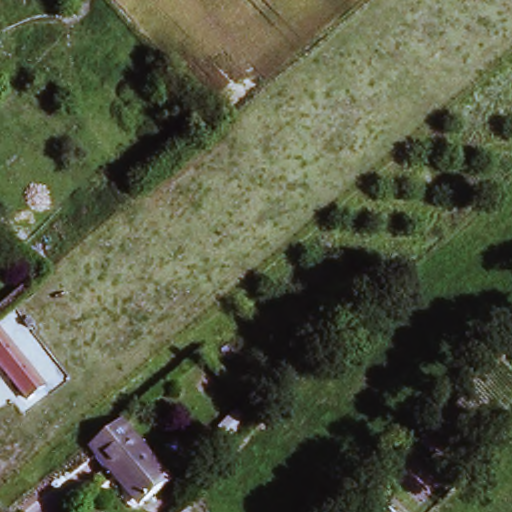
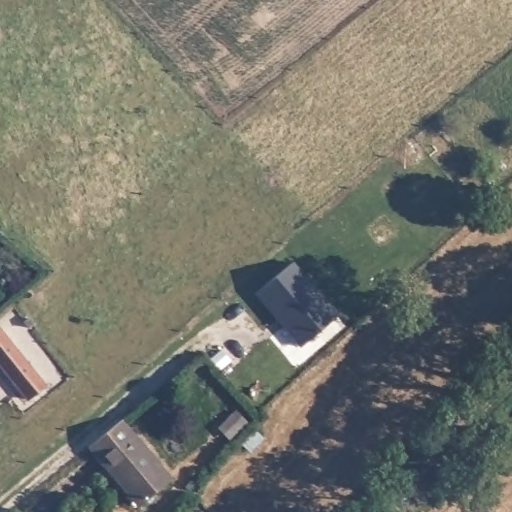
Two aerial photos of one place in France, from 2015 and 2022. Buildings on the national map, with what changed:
new [(339,317),(301,350),(255,295),(294,263),(339,317)]
unchanged [(27,393),(0,362),(0,328),(44,378),(27,393)]
unchanged [(239,427),(230,417),(247,403),(255,412),(239,427)]
unchanged [(111,476),(87,450),(121,421),(172,478),(147,502),(140,508),(111,476)]

